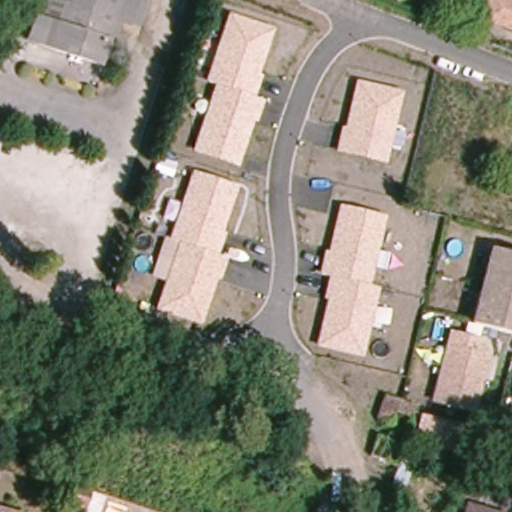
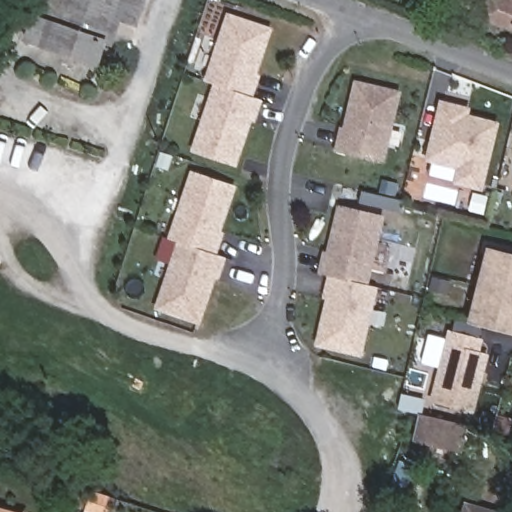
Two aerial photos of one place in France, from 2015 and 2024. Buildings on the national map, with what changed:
unchanged [(42,0),(146,0),(137,25),(121,20),(113,45),(108,43),(35,18),(42,0)]
unchanged [(494,0),(512,0),(512,31),(486,22),(494,0)]
unchanged [(237,167),(191,152),(213,84),(204,81),(227,13),(272,28),(258,74),(261,75),(254,98),(263,100),(256,122),(252,121),(237,167)]
unchanged [(27,40),(35,18),(108,43),(101,65),(27,40)]
unchanged [(354,81),(402,92),(384,163),(335,152),(340,126),(344,127),(354,81)]
new [(458,181),(461,167),(430,159),(443,103),(460,107),(469,109),(467,116),(458,114),(498,124),(482,187),(458,181)]
unchanged [(219,280),(217,279),(201,324),(154,309),(176,241),(168,238),(191,171),(237,186),(221,232),(224,233),(218,255),(225,258),(219,280)]
unchanged [(338,205),(384,216),(369,285),(378,287),(362,358),(315,347),(326,300),(323,299),(328,276),(319,273),(324,250),(327,250),(338,205)]
unchanged [(473,321),(493,249),(512,255),(512,332),(482,324),(473,321)]
unchanged [(474,410),(431,399),(449,329),(482,337),(480,350),(490,353),(474,410)]
unchanged [(412,419),(394,415),(391,425),(375,421),(383,394),(416,404),(412,419)]
unchanged [(463,452),(413,443),(421,414),(468,425),(463,452)]
unchanged [(416,462),(405,492),(389,488),(395,465),(397,456),(416,462)]
unchanged [(512,485),(505,482),(512,463),(512,485)]
unchanged [(90,500),(77,495),(73,505),(63,502),(69,482),(93,490),(90,500)]
unchanged [(485,512),(467,512),(468,507),(485,512)]
unchanged [(4,512),(0,512),(0,511),(4,512)]

